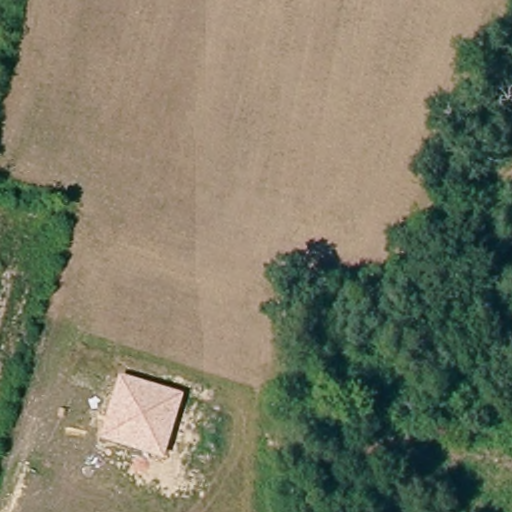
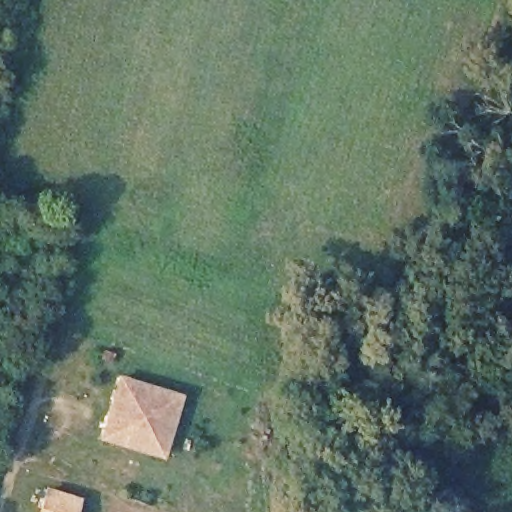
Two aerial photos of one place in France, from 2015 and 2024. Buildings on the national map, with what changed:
unchanged [(100,439),(118,375),(184,396),(163,459),(100,439)]
new [(77,512),(38,512),(46,486),(81,498),(77,512)]

